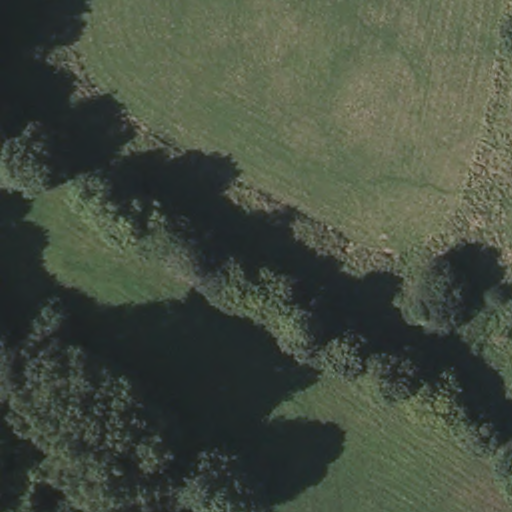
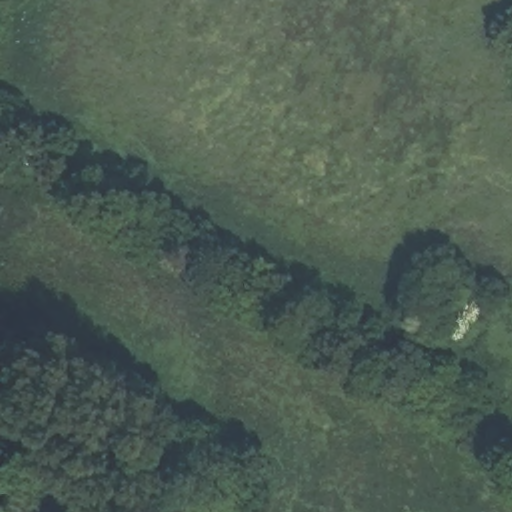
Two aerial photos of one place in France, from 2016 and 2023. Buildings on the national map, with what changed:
unchanged [(140,487),(159,451),(197,470),(234,487),(225,505),(221,512),(189,512),(140,487)]

